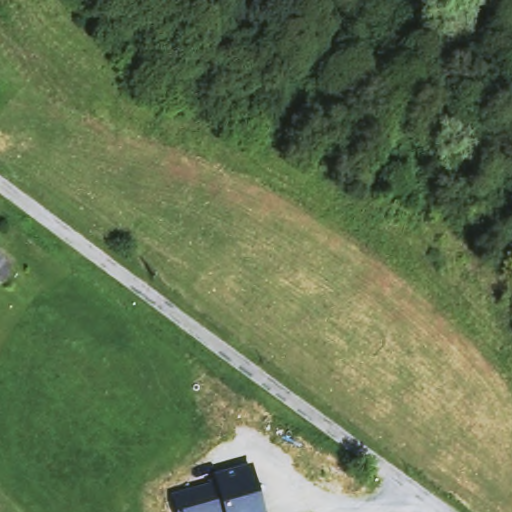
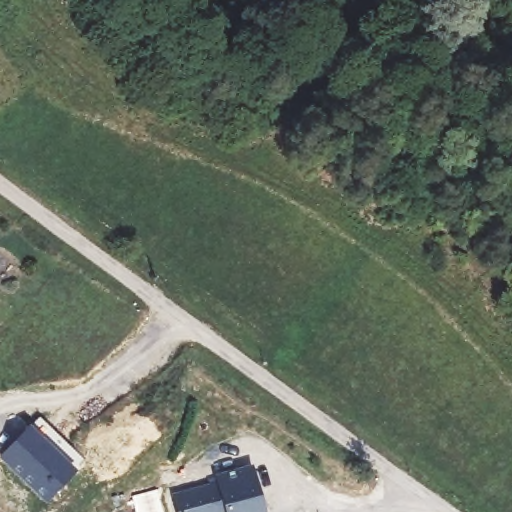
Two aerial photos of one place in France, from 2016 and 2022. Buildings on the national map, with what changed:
new [(40,417),(86,462),(76,473),(29,429),(40,417)]
new [(29,429),(76,473),(47,503),(0,459),(29,429)]
unchanged [(181,512),(176,497),(220,485),(219,477),(252,468),(265,512),(181,512)]

